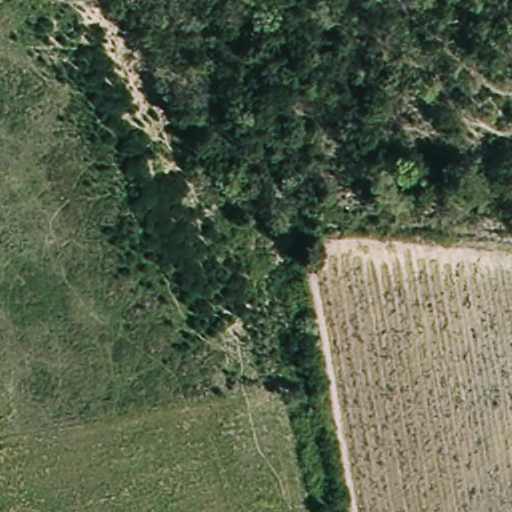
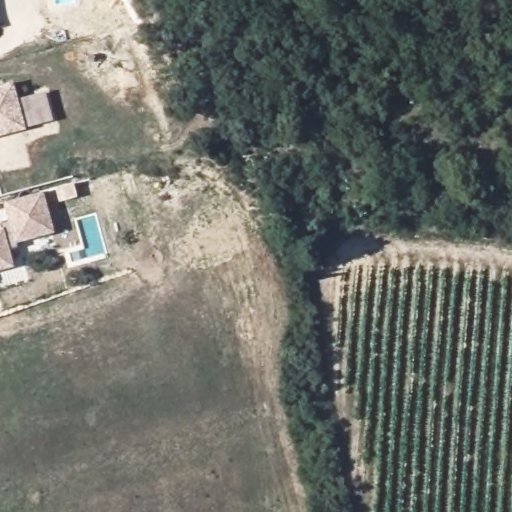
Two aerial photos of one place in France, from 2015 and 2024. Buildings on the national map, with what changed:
new [(0,138),(0,88),(13,84),(25,131),(0,138)]
new [(15,245),(17,248),(8,251),(12,269),(0,272),(0,224),(7,222),(3,205),(43,193),(53,235),(15,245)]

